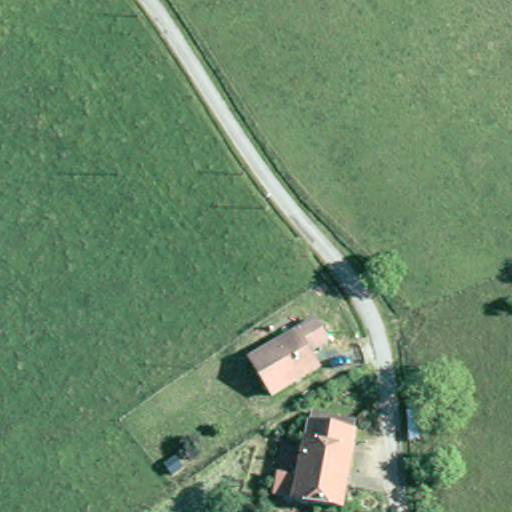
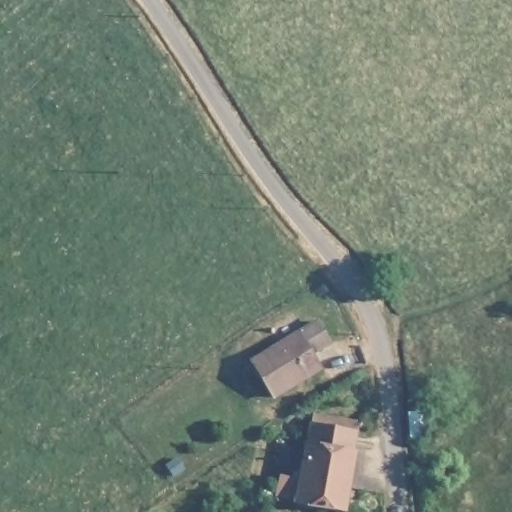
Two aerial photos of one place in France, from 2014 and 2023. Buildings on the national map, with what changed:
unchanged [(325,336),(307,349),(316,363),(269,395),(245,360),(313,316),(325,336)]
unchanged [(417,441),(407,442),(404,414),(415,413),(417,441)]
unchanged [(342,506),(292,498),(292,493),(289,492),(269,489),(272,471),(295,474),(302,437),(305,417),(332,422),(350,426),(347,446),(352,447),(342,506)]

